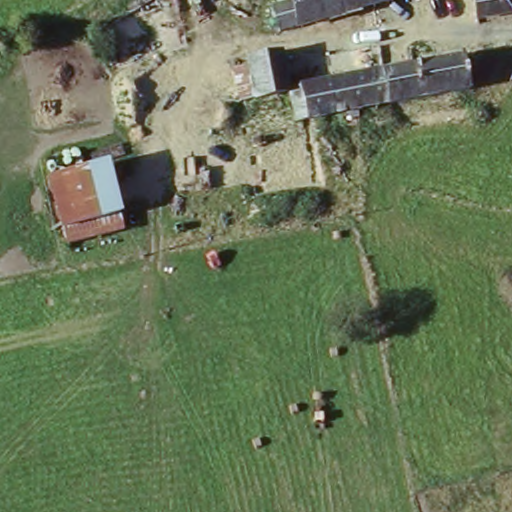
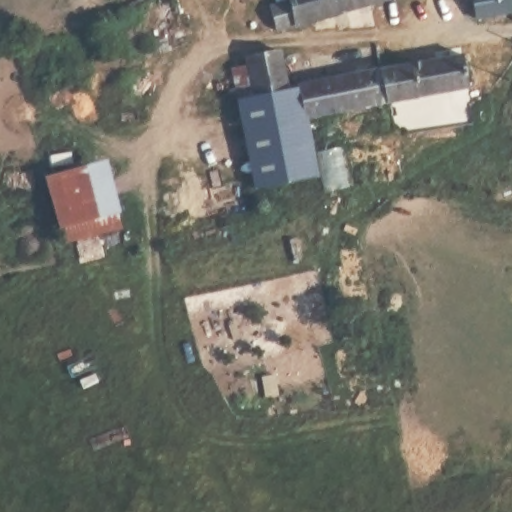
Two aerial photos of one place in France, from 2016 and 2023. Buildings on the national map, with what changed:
unchanged [(277,31),(268,6),(288,0),(396,0),(277,31)]
unchanged [(475,19),(471,0),(510,0),(512,11),(475,19)]
unchanged [(245,100),(237,72),(254,69),(250,59),(285,51),(293,90),(245,100)]
unchanged [(472,89),(392,104),(300,120),(293,90),(467,52),(472,89)]
new [(320,177),(255,188),(237,102),(245,100),(293,90),(300,120),(307,119),(320,177)]
unchanged [(109,175),(122,227),(65,243),(52,190),(109,175)]

